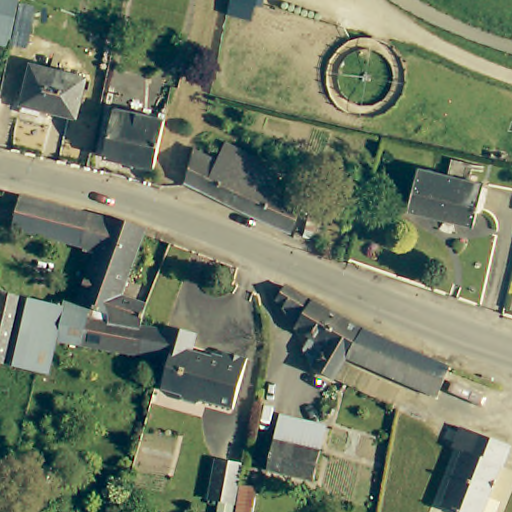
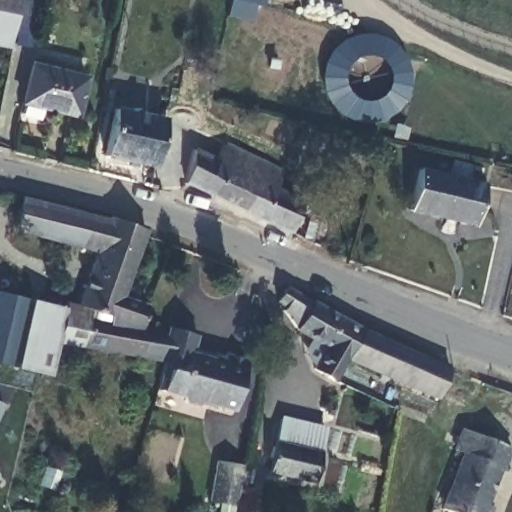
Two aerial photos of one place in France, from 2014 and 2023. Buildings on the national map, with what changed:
unchanged [(7,53),(0,51),(0,0),(16,0),(10,37),(7,53)]
unchanged [(231,0),(264,0),(263,6),(254,6),(251,20),(229,14),(231,0)]
new [(383,121),(368,122),(354,122),(341,115),(331,107),(324,94),(322,76),(325,61),(335,47),(347,37),(361,34),(374,35),(389,41),(403,54),(409,68),(409,84),(405,101),(395,113),(383,121)]
unchanged [(82,80),(72,117),(18,102),(27,64),(82,80)]
unchanged [(164,122),(155,167),(102,156),(112,111),(164,122)]
unchanged [(282,165),(272,187),(301,204),(285,241),(255,226),(177,190),(187,142),(212,153),(224,132),(282,165)]
unchanged [(481,180),(473,224),(405,210),(413,166),(481,180)]
unchanged [(71,344),(52,340),(47,367),(0,354),(0,289),(79,311),(87,281),(90,244),(12,222),(19,195),(123,220),(140,227),(125,300),(156,312),(152,332),(145,363),(71,344)]
unchanged [(344,360),(332,379),(313,367),(321,347),(294,328),(298,317),(271,302),(276,286),(356,326),(360,328),(349,351),(344,360)]
unchanged [(152,332),(172,340),(176,328),(203,337),(199,353),(231,361),(232,357),(255,363),(241,415),(216,406),(211,408),(198,405),(195,400),(170,392),(167,367),(145,363),(152,332)]
unchanged [(445,370),(435,405),(347,362),(344,360),(349,351),(360,328),(445,370)]
unchanged [(279,420),(329,431),(323,456),(274,445),(279,420)]
unchanged [(457,448),(465,428),(512,446),(512,448),(505,467),(503,467),(485,512),(456,512),(448,509),(444,507),(452,487),(466,452),(457,448)]
unchanged [(321,465),(318,480),(282,472),(268,469),(274,445),(323,456),(321,465)]
unchanged [(239,461),(235,502),(210,500),(213,458),(239,461)]

